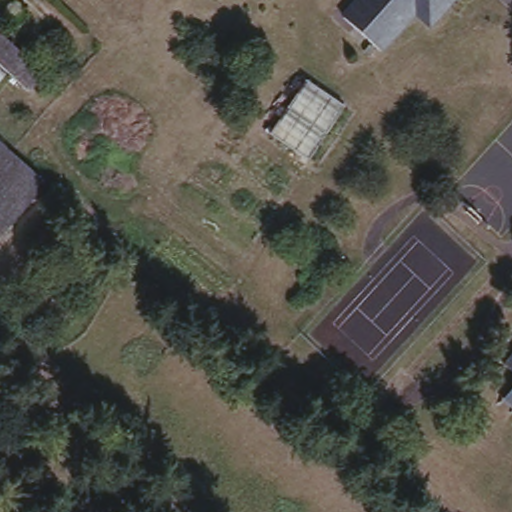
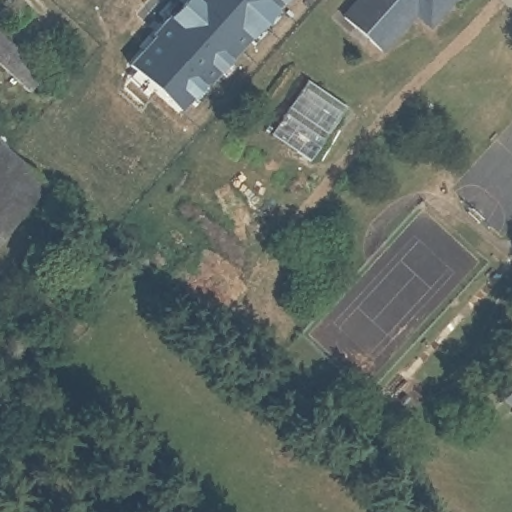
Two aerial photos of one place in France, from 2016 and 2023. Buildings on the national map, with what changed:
new [(179,0),(283,0),(182,114),(125,60),(179,0)]
unchanged [(415,16),(383,51),(340,15),(353,0),(452,0),(431,27),(415,16)]
unchanged [(13,81),(0,70),(0,28),(9,36),(3,42),(44,80),(29,96),(13,81)]
unchanged [(337,90),(299,150),(265,129),(304,72),(337,90)]
unchanged [(35,177),(45,187),(0,239),(0,146),(10,155),(35,177)]
unchanged [(512,392),(512,395),(511,394),(512,392)]

